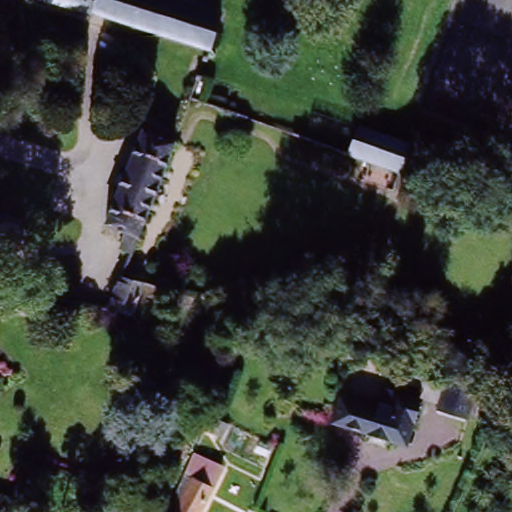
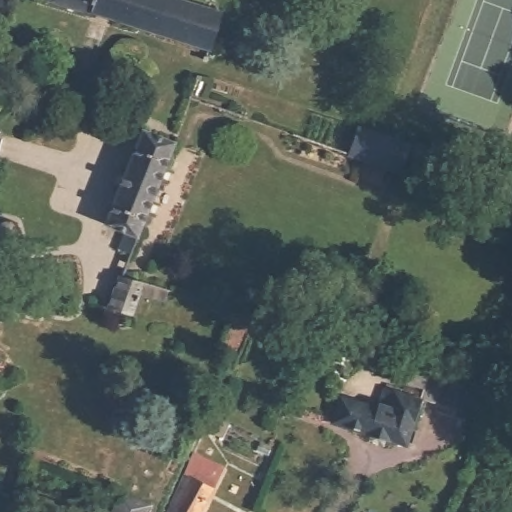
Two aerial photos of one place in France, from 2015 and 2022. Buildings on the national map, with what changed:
unchanged [(144,29),(120,21),(100,15),(99,17),(60,5),(50,2),(50,0),(177,0),(216,12),(227,15),(215,51),(144,29)]
unchanged [(220,95),(230,98),(229,99),(227,104),(217,101),(220,95)]
unchanged [(365,153),(315,135),(319,124),(350,135),(355,137),(361,122),(411,141),(402,166),(395,186),(357,173),(365,153)]
unchanged [(127,232),(106,224),(142,131),(147,133),(152,123),(167,129),(163,139),(174,143),(138,236),(132,252),(121,248),(127,232)]
unchanged [(19,239),(7,250),(0,250),(0,221),(13,224),(19,239)]
unchanged [(117,276),(142,284),(130,316),(105,308),(117,276)]
unchanged [(463,412),(431,401),(440,375),(472,386),(463,412)]
unchanged [(335,424),(343,398),(379,410),(385,391),(422,403),(420,407),(409,444),(408,447),(335,424)]
unchanged [(193,460),(219,473),(215,480),(199,512),(170,512),(193,460)]
unchanged [(157,512),(119,512),(124,503),(125,503),(130,495),(160,505),(157,512)]

